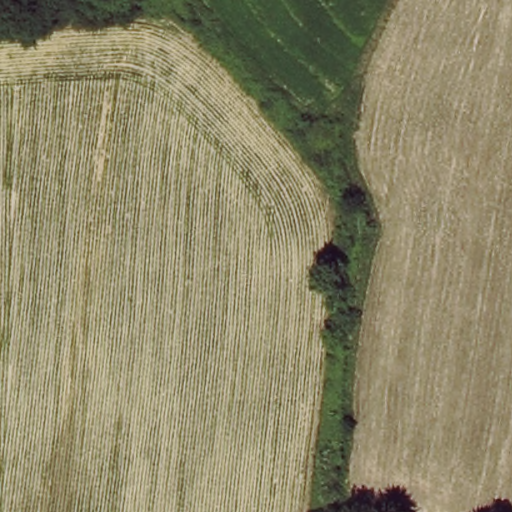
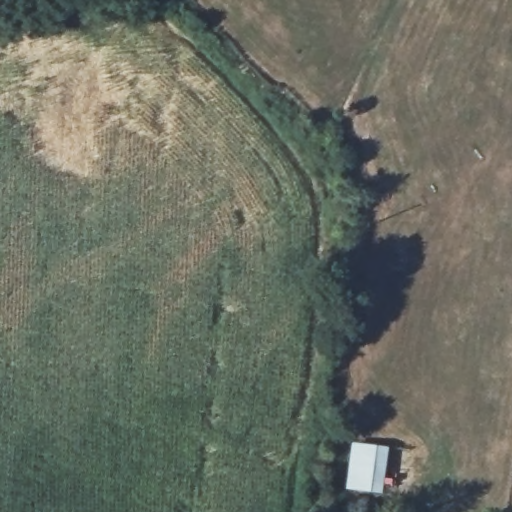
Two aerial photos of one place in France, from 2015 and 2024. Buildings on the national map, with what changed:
new [(352,441),(389,446),(382,494),(345,489),(352,441)]

